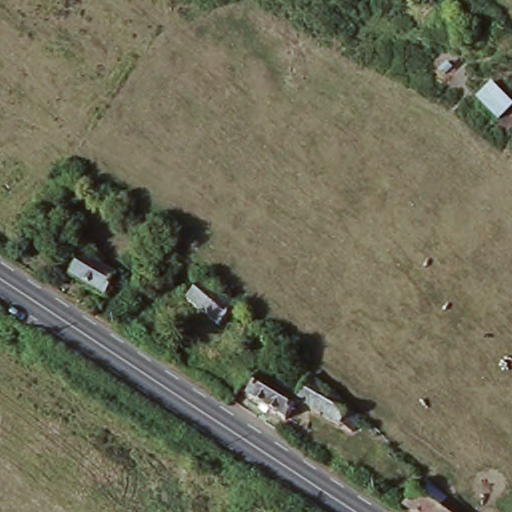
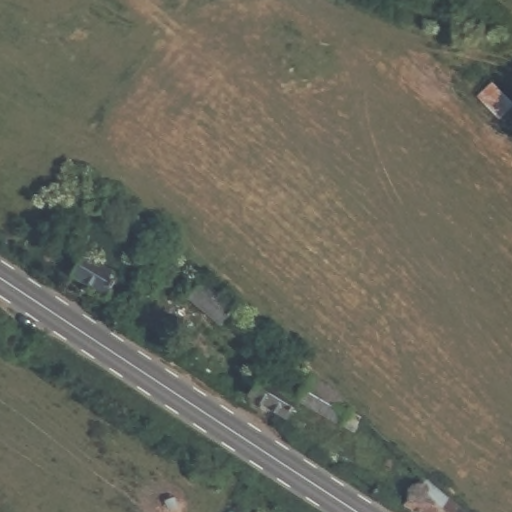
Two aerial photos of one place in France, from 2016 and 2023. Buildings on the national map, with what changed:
unchanged [(512,101),(512,105),(498,119),(474,92),(492,79),(512,101)]
unchanged [(38,194),(57,207),(48,219),(30,205),(38,194)]
unchanged [(80,253),(115,274),(102,295),(68,273),(80,253)]
unchanged [(196,278),(230,306),(215,323),(182,295),(196,278)]
unchanged [(347,433),(294,400),(281,419),(243,393),(265,360),(302,385),(309,375),(344,407),(357,415),(358,416),(347,433)]
unchanged [(422,483),(458,512),(410,512),(401,507),(422,483)]

